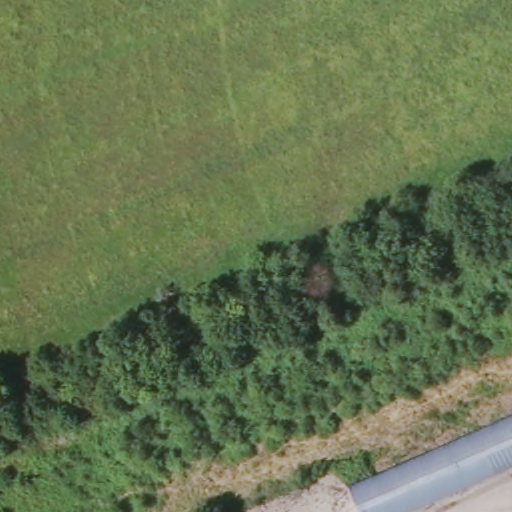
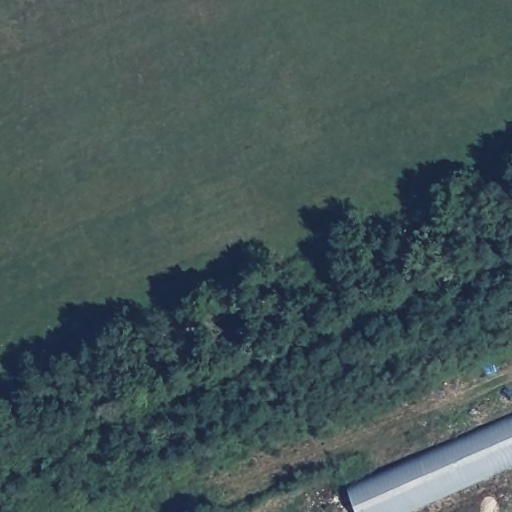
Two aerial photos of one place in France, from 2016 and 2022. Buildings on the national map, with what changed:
unchanged [(429,512),(366,512),(357,490),(512,420),(512,475),(429,512)]

